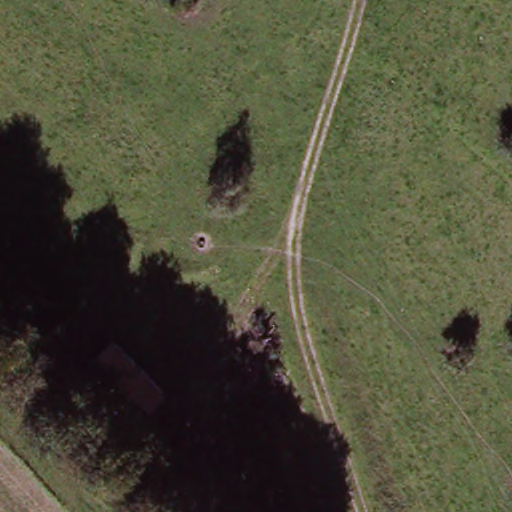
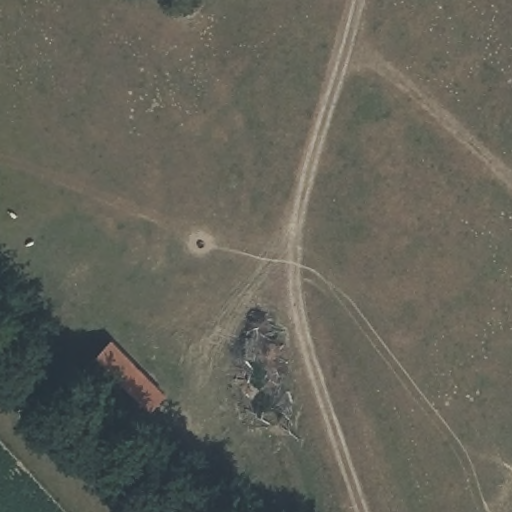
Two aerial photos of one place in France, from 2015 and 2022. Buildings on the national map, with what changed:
unchanged [(108,346),(164,393),(142,417),(86,371),(108,346)]

